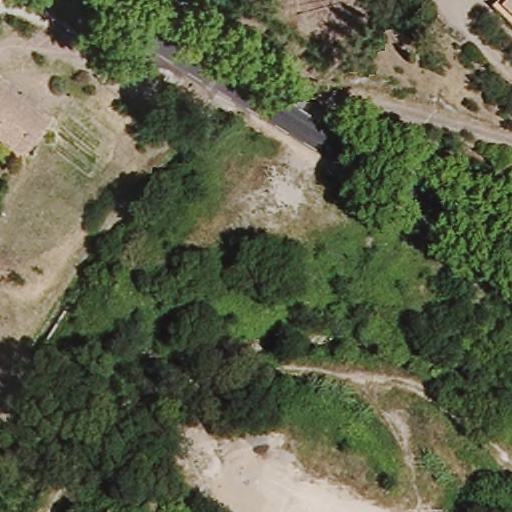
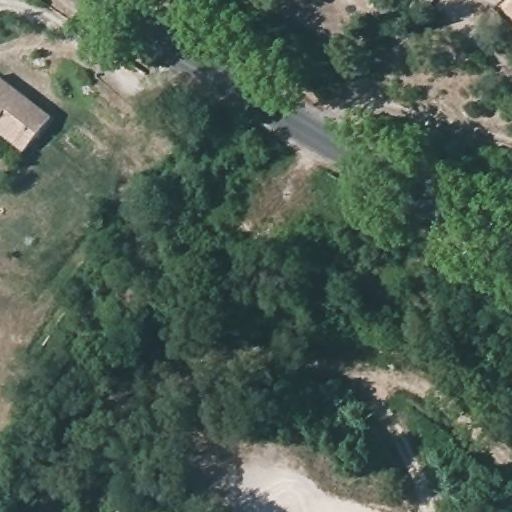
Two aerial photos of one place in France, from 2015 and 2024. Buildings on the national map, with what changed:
unchanged [(173,5),(167,0),(177,0),(173,5)]
unchanged [(503,12),(512,2),(512,20),(503,12)]
unchanged [(18,152),(0,139),(0,85),(44,119),(18,152)]
unchanged [(496,512),(505,501),(512,507),(512,512),(496,512)]

